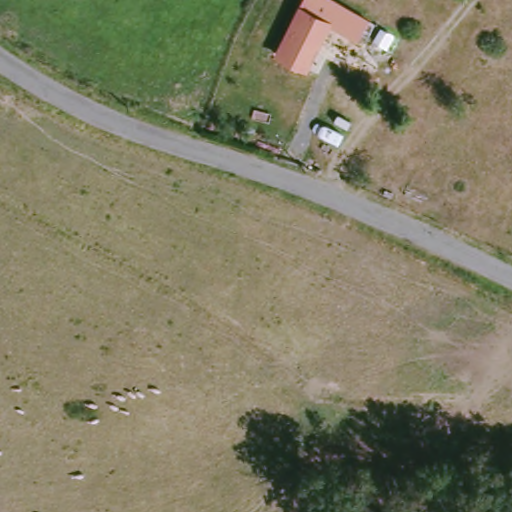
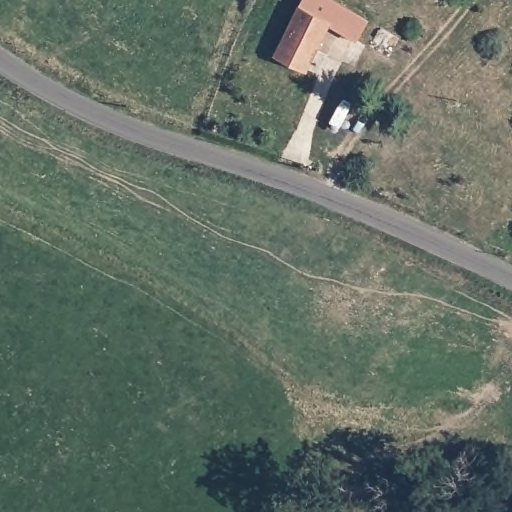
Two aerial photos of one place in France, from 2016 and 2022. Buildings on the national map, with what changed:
unchanged [(305,7),(308,0),(339,0),(373,20),(360,41),(332,25),(334,20),(305,7)]
unchanged [(334,20),(308,73),(273,55),(298,4),(334,20)]

